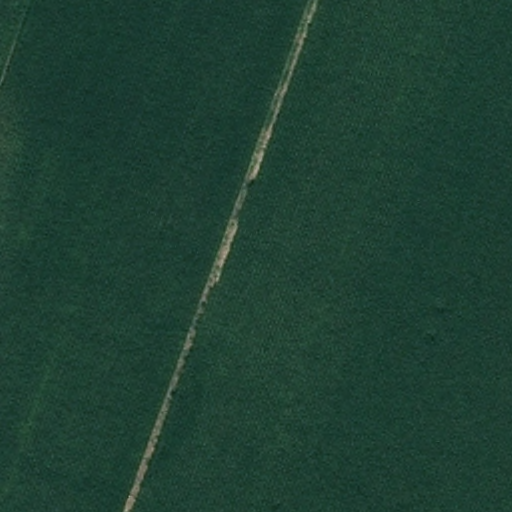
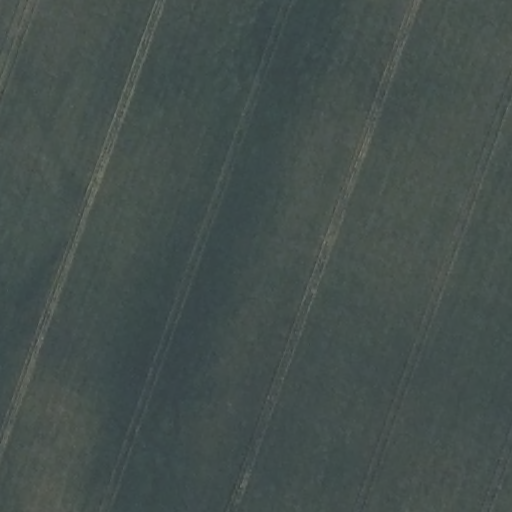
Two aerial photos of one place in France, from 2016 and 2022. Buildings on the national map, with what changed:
[]

